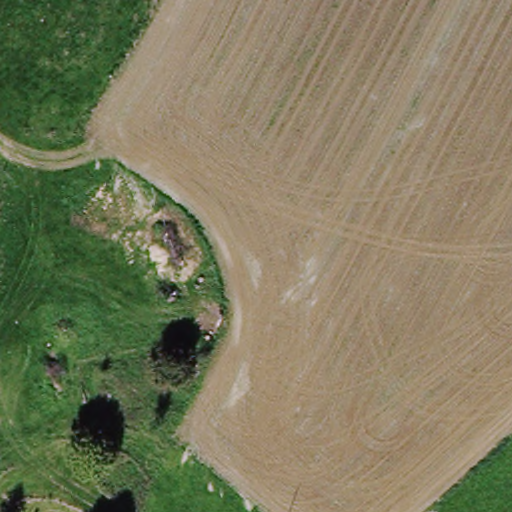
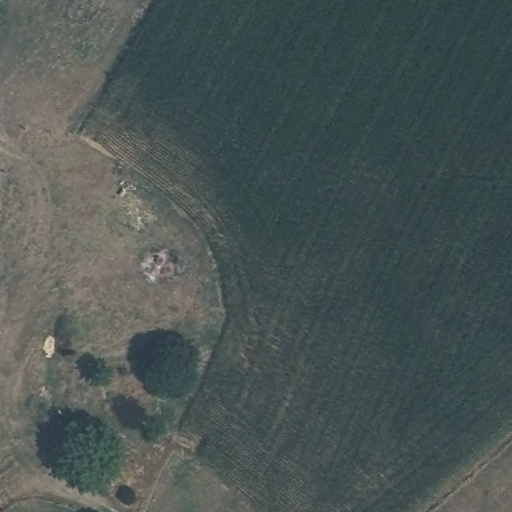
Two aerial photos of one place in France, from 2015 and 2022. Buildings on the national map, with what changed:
[]

